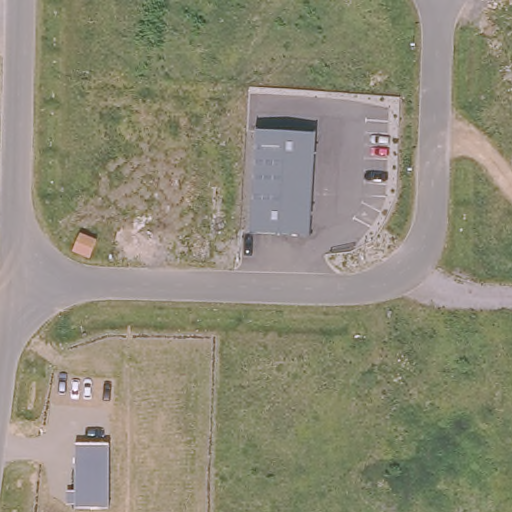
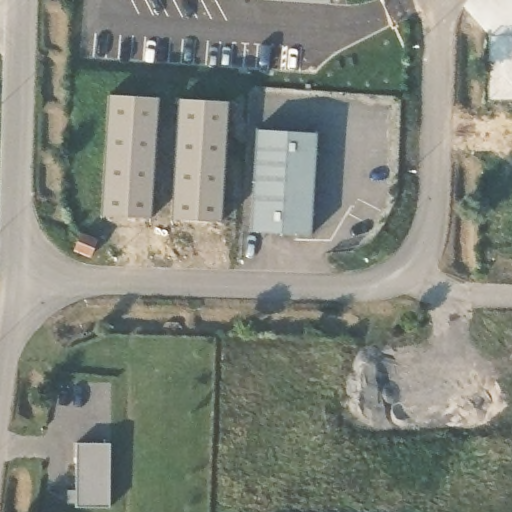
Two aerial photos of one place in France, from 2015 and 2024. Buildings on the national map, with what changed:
new [(255,0),(327,0),(327,5),(255,0)]
new [(109,96),(157,99),(150,219),(102,215),(109,96)]
new [(227,102),(220,222),(173,220),(179,100),(227,102)]
unchanged [(315,135),(309,239),(250,235),(254,131),(315,135)]
unchanged [(80,235),(97,241),(90,257),(74,251),(80,235)]
unchanged [(109,445),(109,508),(72,508),(73,503),(64,504),(64,491),(72,491),(72,445),(109,445)]

